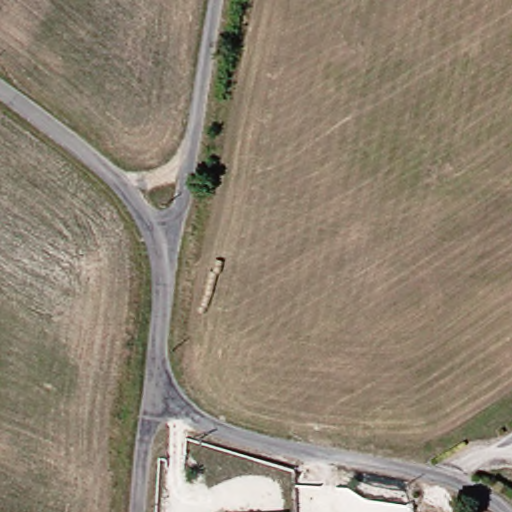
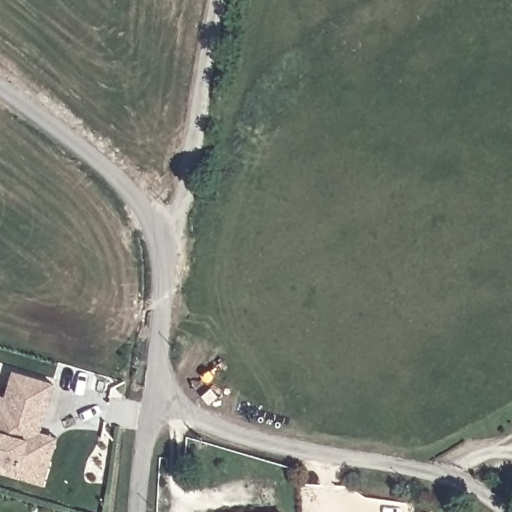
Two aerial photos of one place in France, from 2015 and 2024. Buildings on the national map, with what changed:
new [(59,438),(45,487),(0,475),(0,395),(5,396),(11,371),(55,384),(41,432),(59,438)]
unchanged [(239,512),(283,509),(284,512),(239,512)]

